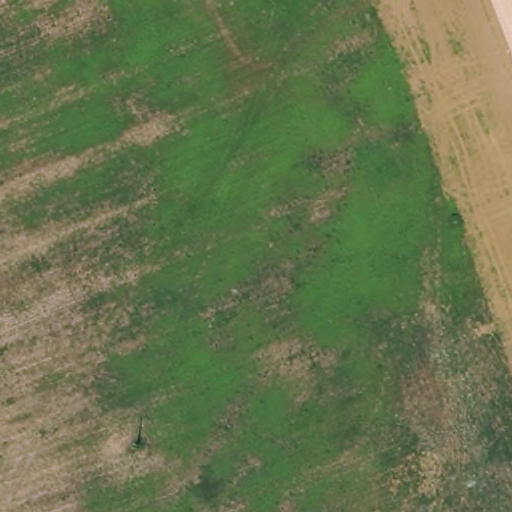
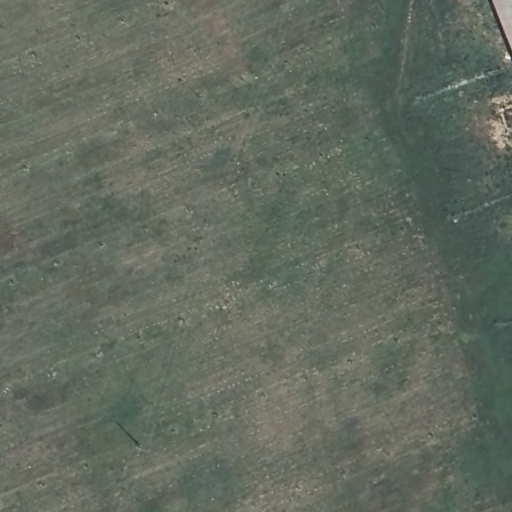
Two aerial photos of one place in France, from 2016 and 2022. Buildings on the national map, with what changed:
unchanged [(512,0),(512,50),(493,0),(512,0)]

